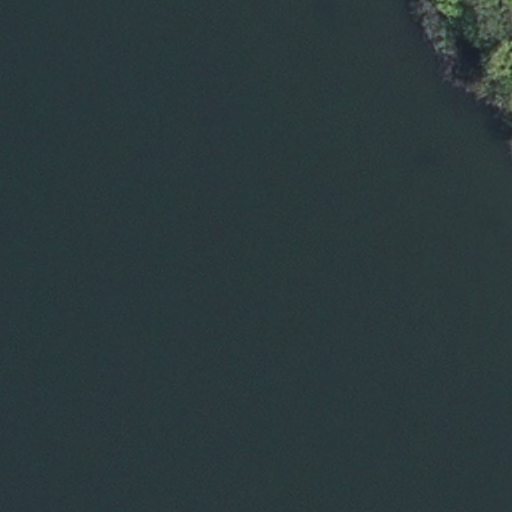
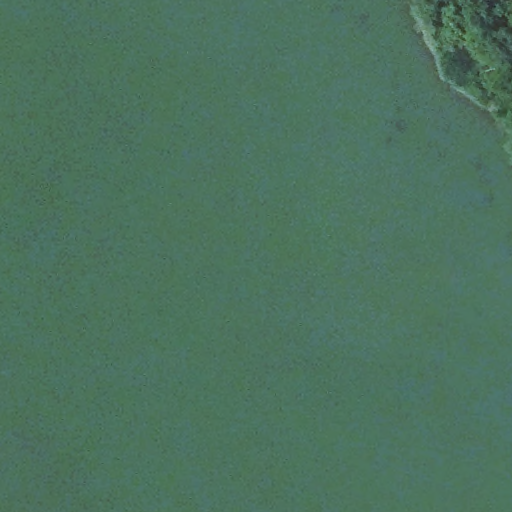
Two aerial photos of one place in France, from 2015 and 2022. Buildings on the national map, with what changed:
[]

